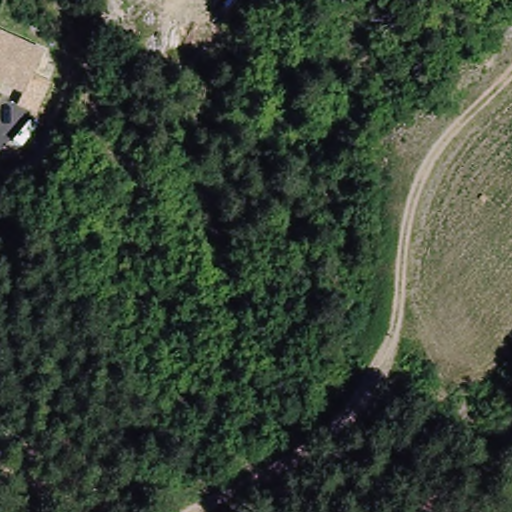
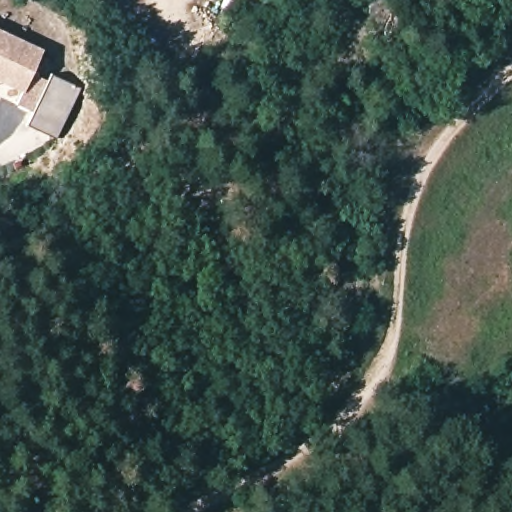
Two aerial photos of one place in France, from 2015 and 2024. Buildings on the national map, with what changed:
unchanged [(22,95),(0,84),(0,28),(47,51),(22,95)]
new [(50,82),(52,75),(82,90),(58,142),(28,128),(35,112),(17,106),(22,95),(33,75),(50,82)]

